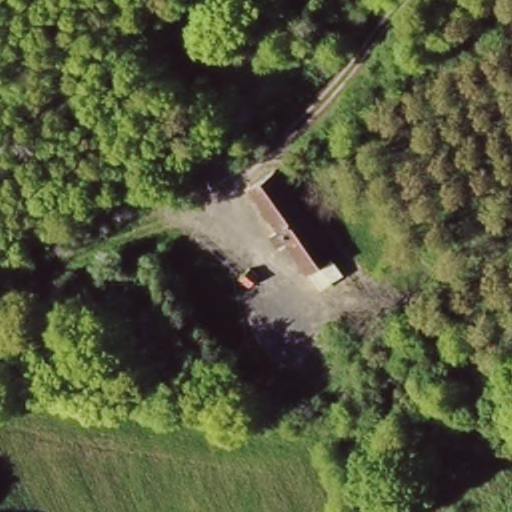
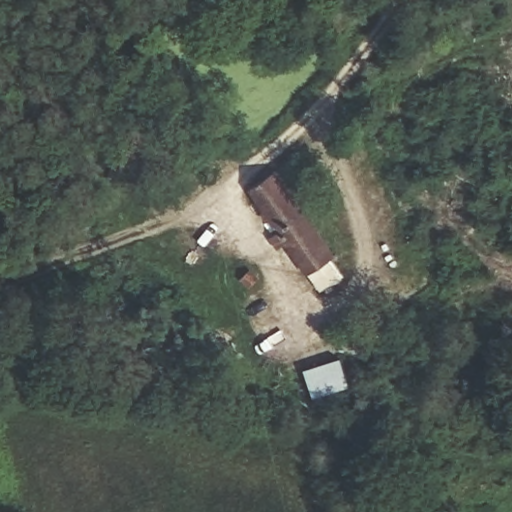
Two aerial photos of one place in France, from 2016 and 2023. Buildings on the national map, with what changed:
unchanged [(344,260),(321,276),(307,254),(306,254),(297,242),(290,248),(285,239),(292,234),(280,217),(277,219),(272,213),(277,209),(264,189),(262,187),(285,175),(344,260)]

